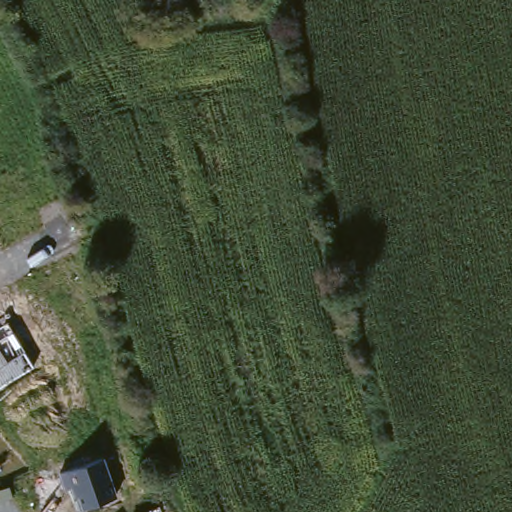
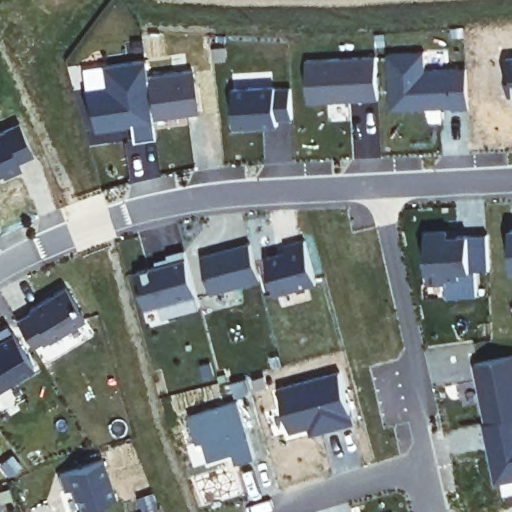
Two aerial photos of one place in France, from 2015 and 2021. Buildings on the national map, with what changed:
new [(425,51),(426,70),(468,69),(470,108),(392,110),(390,53),(425,51)]
new [(378,55),(380,98),(310,101),(307,58),(378,55)]
new [(512,57),(512,93),(508,57),(512,57)]
new [(150,99),(130,102),(133,122),(95,127),(85,90),(106,87),(104,67),(145,61),(148,77),(150,99)]
new [(194,72),(199,113),(153,119),(148,77),(194,72)]
new [(277,87),(278,89),(291,89),(293,119),(279,119),(280,124),(237,126),(235,90),(277,87)]
new [(449,229),(449,235),(488,233),(490,268),(477,269),(477,294),(447,295),(447,281),(428,282),(427,230),(449,229)]
new [(297,250),(295,244),(315,239),(326,280),(286,291),(277,256),(297,250)]
new [(262,280),(212,295),(201,257),(251,242),(262,280)]
new [(170,262),(167,254),(184,250),(199,306),(161,316),(158,304),(145,307),(136,271),(170,262)]
unchanged [(32,311),(31,308),(67,286),(85,316),(49,338),(47,335),(32,344),(18,319),(32,311)]
unchanged [(0,327),(5,323),(33,366),(0,387),(0,327)]
new [(512,354),(512,415),(483,420),(472,362),(512,354)]
new [(340,373),(353,425),(317,434),(315,426),(290,432),(279,390),(340,373)]
new [(236,399),(252,457),(234,462),(231,452),(207,459),(201,440),(195,441),(187,415),(236,399)]
unchanged [(79,510),(71,488),(66,490),(60,472),(102,458),(115,497),(79,510)]

